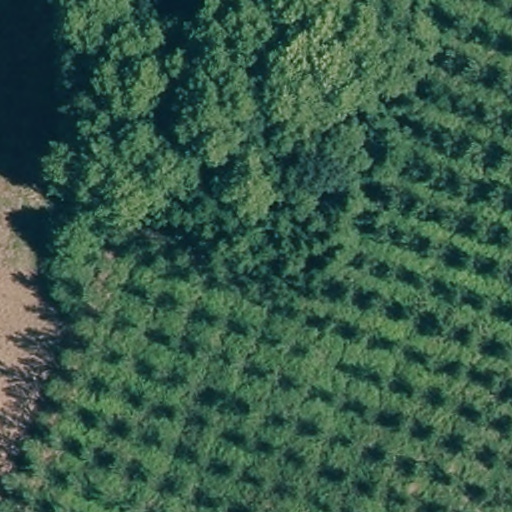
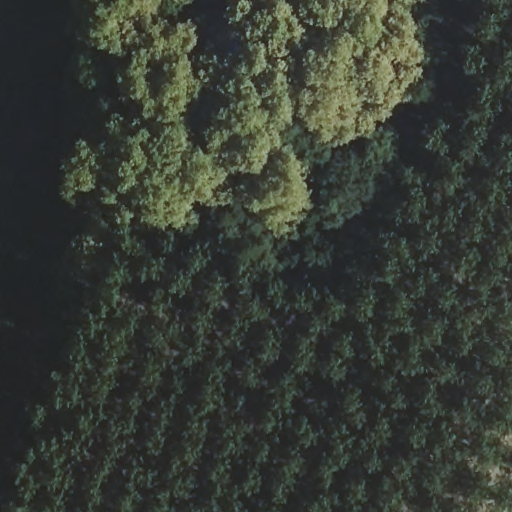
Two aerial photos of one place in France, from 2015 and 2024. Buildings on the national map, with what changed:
[]

